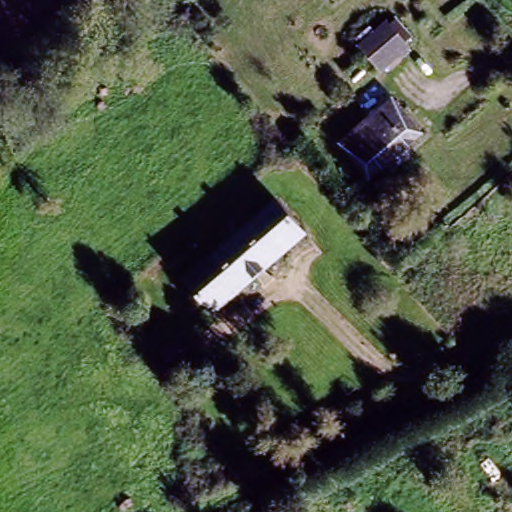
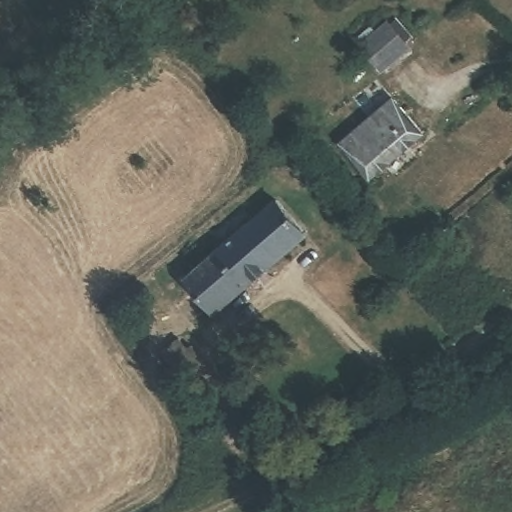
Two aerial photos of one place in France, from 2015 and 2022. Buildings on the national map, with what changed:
unchanged [(403,46),(377,69),(357,47),(384,24),(403,46)]
unchanged [(418,134),(365,179),(337,145),(389,100),(418,134)]
unchanged [(209,312),(180,278),(272,199),(301,234),(209,312)]
unchanged [(204,362),(182,379),(162,353),(178,339),(187,351),(192,347),(204,362)]

